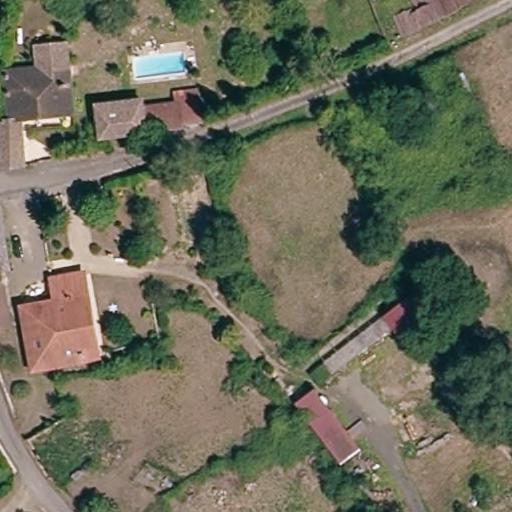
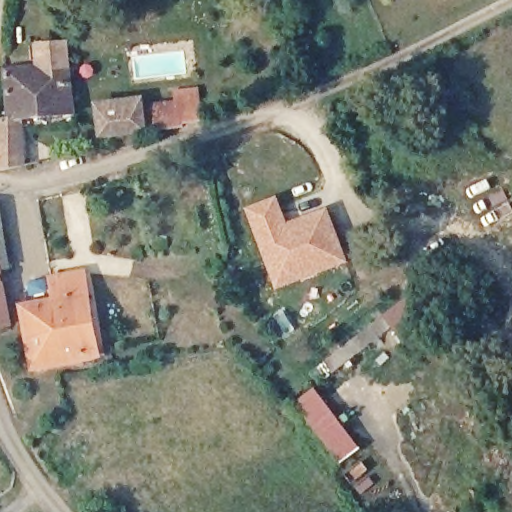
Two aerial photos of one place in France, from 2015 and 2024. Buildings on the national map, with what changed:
unchanged [(14,165),(8,160),(3,146),(10,146),(10,118),(18,116),(13,67),(44,64),(41,44),(72,40),(81,109),(31,115),(31,146),(33,160),(14,165)]
unchanged [(104,112),(179,104),(178,93),(199,91),(202,117),(181,123),(106,133),(104,112)]
new [(246,209),(278,198),(288,224),(329,211),(350,266),(278,291),(246,209)]
unchanged [(4,272),(11,316),(13,326),(0,330),(0,212),(1,211),(11,269),(4,272)]
unchanged [(52,286),(82,282),(94,362),(56,370),(36,371),(27,318),(55,311),(52,286)]
unchanged [(415,311),(393,329),(333,374),(322,387),(311,374),(325,362),(383,317),(406,300),(415,311)]
unchanged [(362,449),(342,465),(294,405),(315,389),(362,449)]

